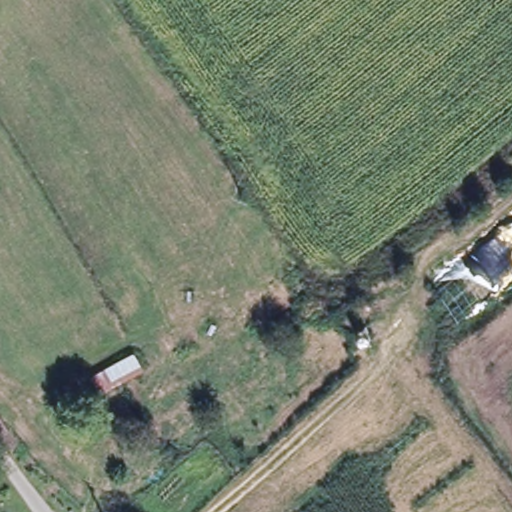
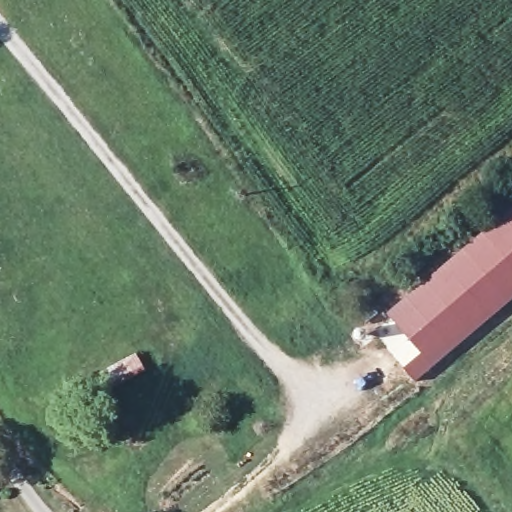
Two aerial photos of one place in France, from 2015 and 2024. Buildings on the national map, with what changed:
new [(512,303),(421,384),(406,368),(422,353),(390,314),(512,209),(512,303)]
demolished [(435,286),(512,221),(512,290),(461,329),(435,286)]
unchanged [(135,348),(143,370),(112,385),(104,366),(135,348)]

